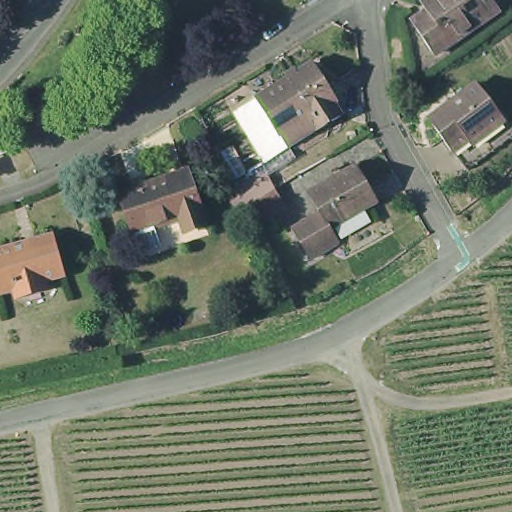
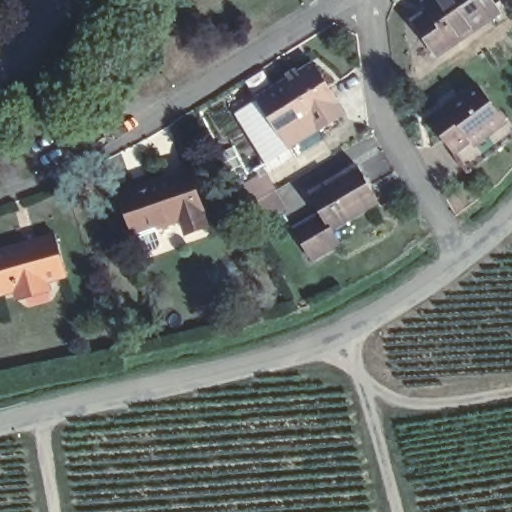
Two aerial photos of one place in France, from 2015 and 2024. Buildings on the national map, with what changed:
unchanged [(488,16),(439,49),(418,16),(434,6),(429,0),(498,0),(484,10),(488,16)]
unchanged [(263,94),(318,59),(341,96),(338,98),(347,112),(324,126),(294,145),(286,131),(263,94)]
unchanged [(464,125),(447,137),(424,103),(472,69),(499,107),(467,130),(464,125)]
unchanged [(499,107),(504,104),(512,115),(512,120),(462,156),(447,137),(464,125),(467,130),(499,107)]
unchanged [(11,150),(0,155),(0,134),(3,132),(11,150)]
unchanged [(337,225),(329,209),(317,187),(367,160),(387,199),(341,224),(337,225)]
unchanged [(161,247),(146,252),(139,234),(138,234),(125,195),(194,171),(207,210),(205,210),(210,225),(190,232),(185,218),(158,227),(164,242),(161,247)]
unchanged [(250,229),(240,210),(230,192),(262,175),(272,193),(282,211),(250,229)]
unchanged [(302,224),(329,209),(337,225),(341,224),(347,236),(317,253),(302,224)]
unchanged [(4,285),(0,272),(0,247),(61,230),(72,271),(53,276),(54,280),(27,287),(25,279),(4,285)]

